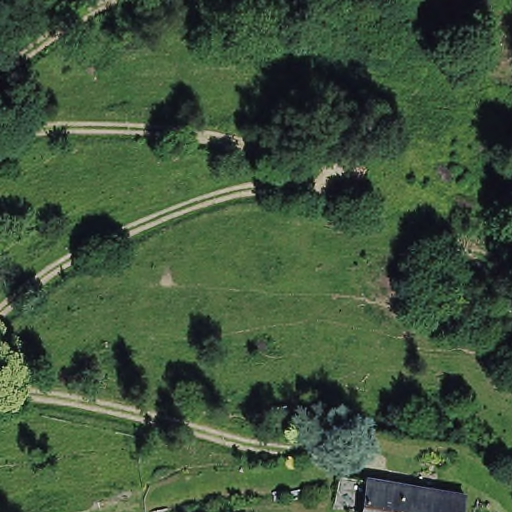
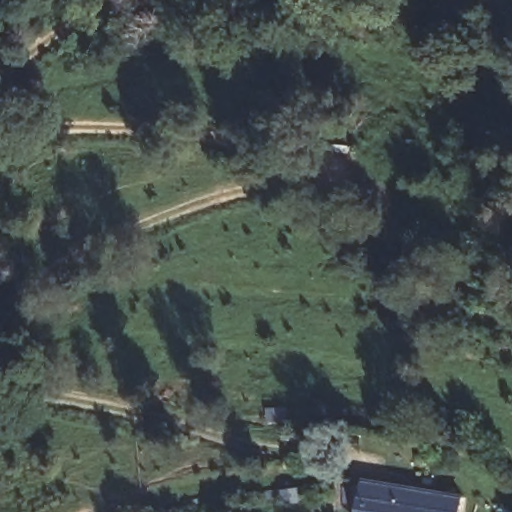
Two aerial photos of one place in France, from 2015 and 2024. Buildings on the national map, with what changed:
unchanged [(359,512),(359,511),(333,507),(341,471),(367,475),(467,493),(464,512),(359,512)]

